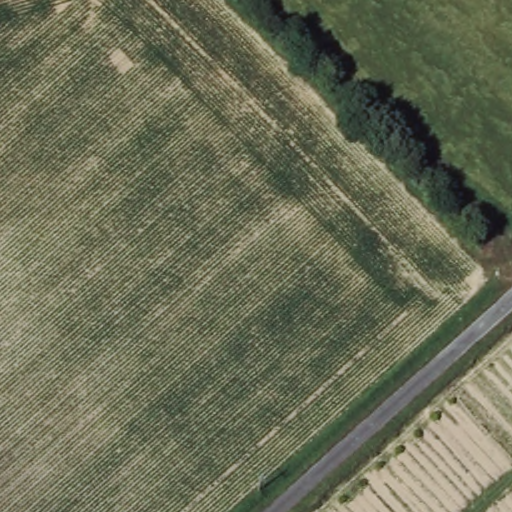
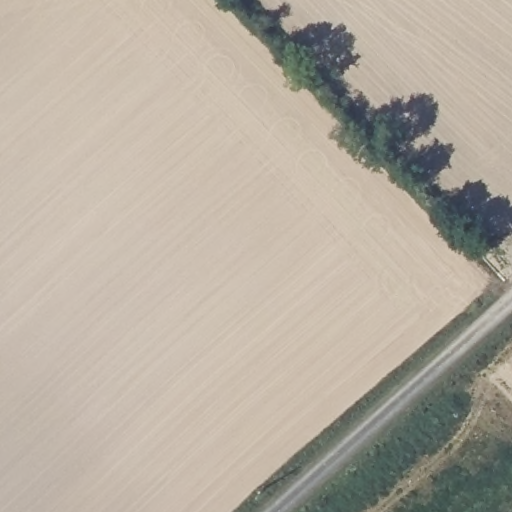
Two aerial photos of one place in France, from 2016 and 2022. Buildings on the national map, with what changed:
[]

